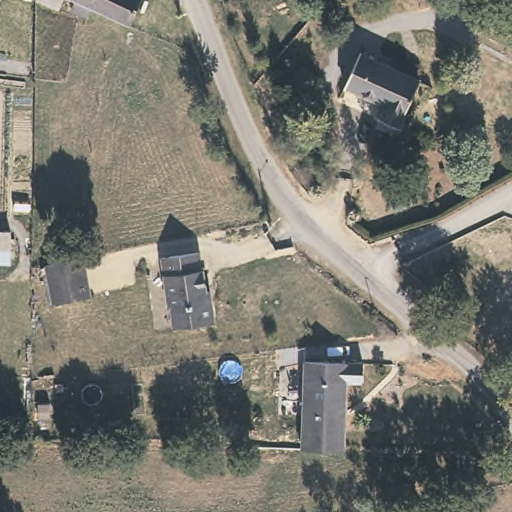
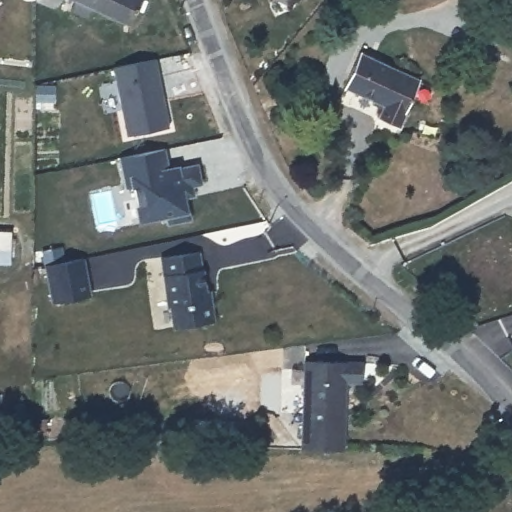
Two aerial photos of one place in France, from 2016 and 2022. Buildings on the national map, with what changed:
unchanged [(58,9),(40,0),(63,0),(58,9)]
unchanged [(90,5),(86,14),(70,6),(73,0),(93,0),(90,5)]
unchanged [(129,24),(90,5),(93,0),(141,0),(129,24)]
unchanged [(512,12),(512,43),(476,25),(488,1),(512,12)]
unchanged [(417,78),(398,125),(378,117),(383,103),(342,87),(357,53),(417,78)]
new [(114,68),(157,61),(169,127),(128,136),(114,68)]
new [(168,225),(168,218),(139,223),(132,187),(126,188),(121,156),(165,149),(169,166),(180,164),(180,167),(199,164),(203,185),(194,186),(195,196),(186,199),(189,212),(190,211),(192,220),(168,225)]
new [(10,264),(0,264),(0,231),(10,231),(10,264)]
unchanged [(209,299),(209,320),(169,325),(166,297),(160,297),(155,253),(190,249),(193,267),(197,266),(199,289),(208,289),(209,299)]
unchanged [(86,262),(93,299),(55,306),(49,269),(86,262)]
unchanged [(358,359),(358,378),(340,378),(339,446),(297,446),(300,358),(358,359)]

